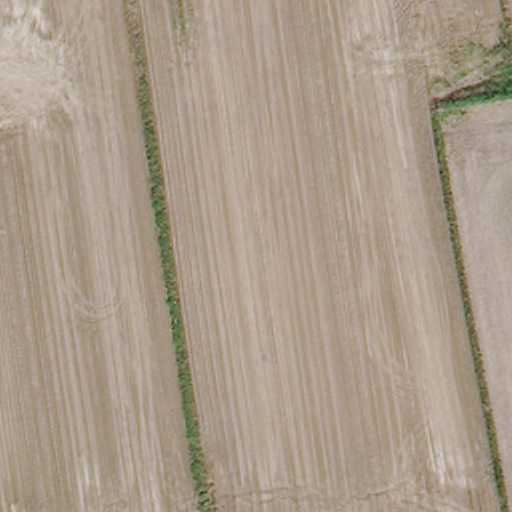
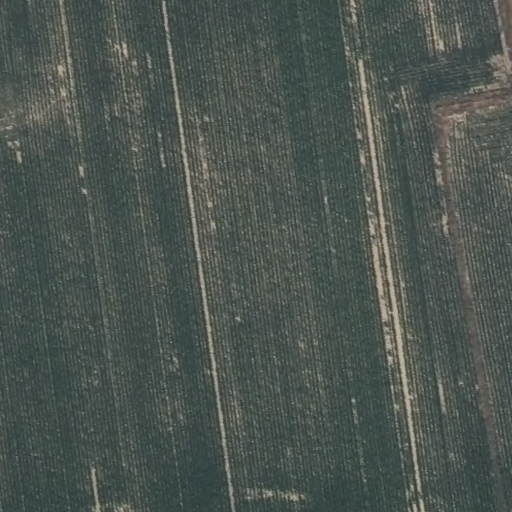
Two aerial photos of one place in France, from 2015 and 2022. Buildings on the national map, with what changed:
[]

